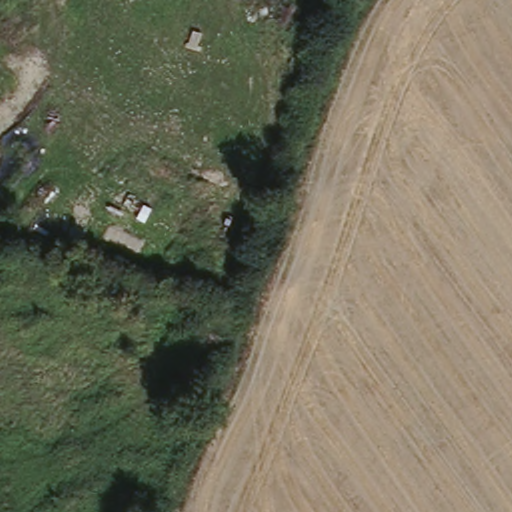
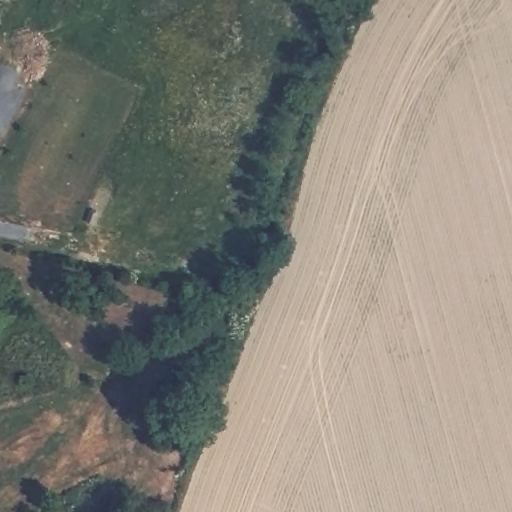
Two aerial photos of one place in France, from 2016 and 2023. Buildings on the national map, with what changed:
unchanged [(1,67),(0,69),(0,66),(1,67)]

